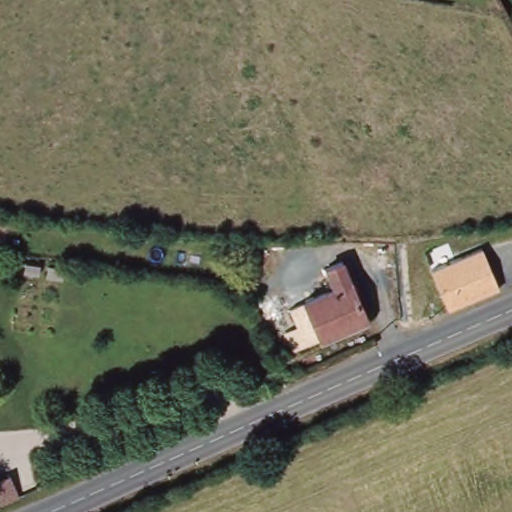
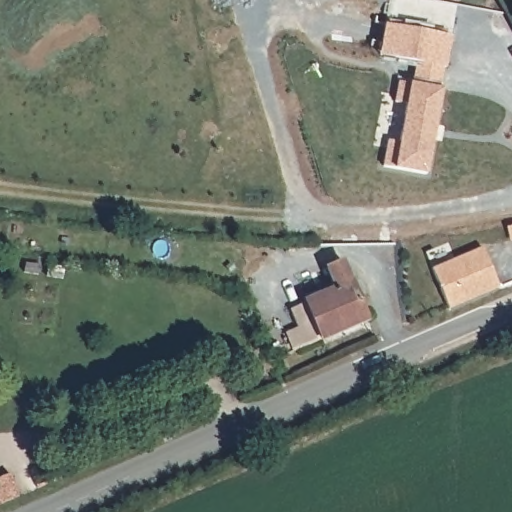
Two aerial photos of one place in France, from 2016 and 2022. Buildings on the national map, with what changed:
new [(400,28),(449,36),(445,68),(395,58),(396,52),(381,50),(384,26),(400,28)]
new [(440,90),(426,174),(395,168),(382,166),(386,141),(398,143),(405,104),(395,102),(397,83),(409,85),(440,90)]
unchanged [(498,288),(449,309),(431,268),(482,248),(498,288)]
unchanged [(293,302),(310,295),(340,282),(331,263),(346,256),(372,316),(327,336),(311,342),(293,302)]
unchanged [(7,473),(18,497),(0,504),(0,476),(7,473)]

